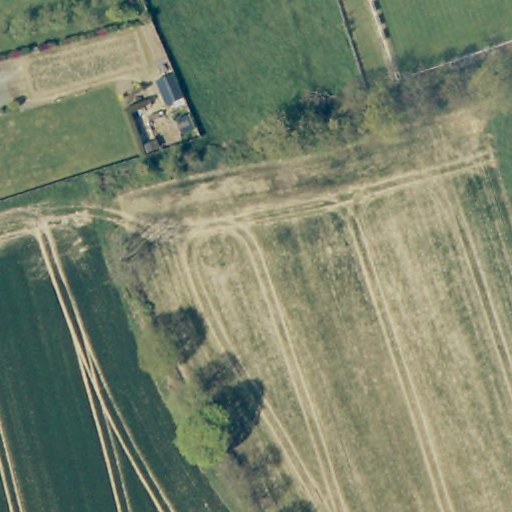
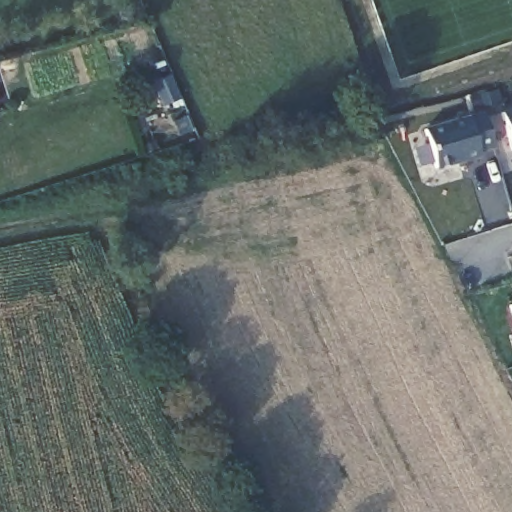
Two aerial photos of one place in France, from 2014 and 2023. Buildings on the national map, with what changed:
unchanged [(129,114),(120,89),(137,85),(144,109),(129,114)]
new [(484,112),(495,148),(479,152),(482,159),(436,170),(424,128),(484,112)]
new [(512,302),(512,314),(509,304),(512,302)]

